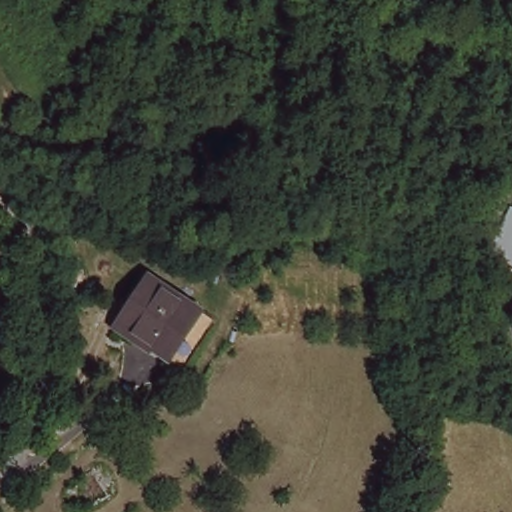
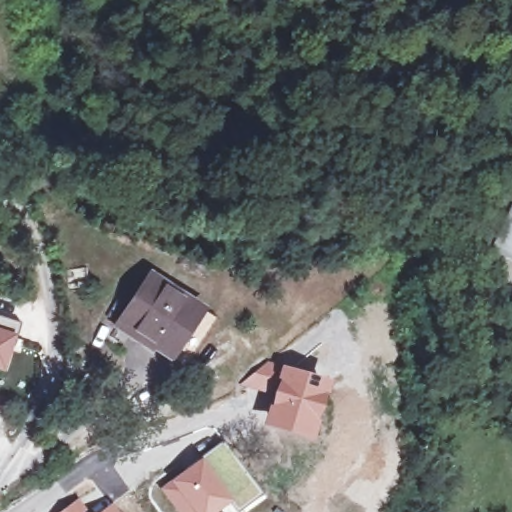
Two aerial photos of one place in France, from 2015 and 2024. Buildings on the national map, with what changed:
unchanged [(149,265),(213,311),(173,365),(110,317),(149,265)]
new [(19,323),(16,336),(5,375),(0,373),(0,317),(19,323)]
new [(312,442),(262,426),(272,395),(239,385),(244,379),(267,360),(281,365),(330,381),(312,442)]
new [(263,495),(240,512),(239,512),(233,503),(202,457),(223,440),(263,495)]
new [(233,503),(219,512),(176,512),(159,488),(202,457),(233,503)]
new [(92,512),(59,512),(80,497),(92,512)]
new [(98,512),(112,503),(119,512),(98,512)]

